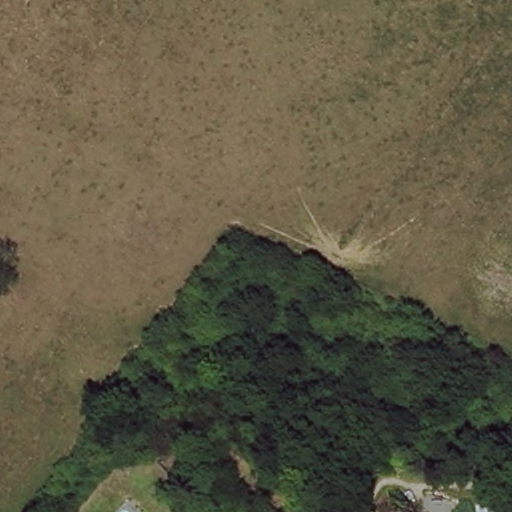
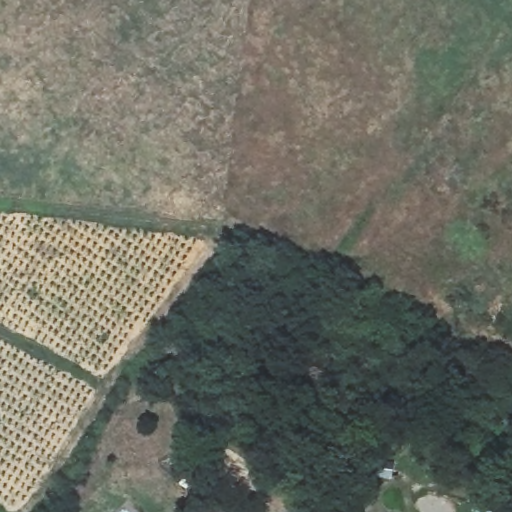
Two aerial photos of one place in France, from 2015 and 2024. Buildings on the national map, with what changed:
[]

